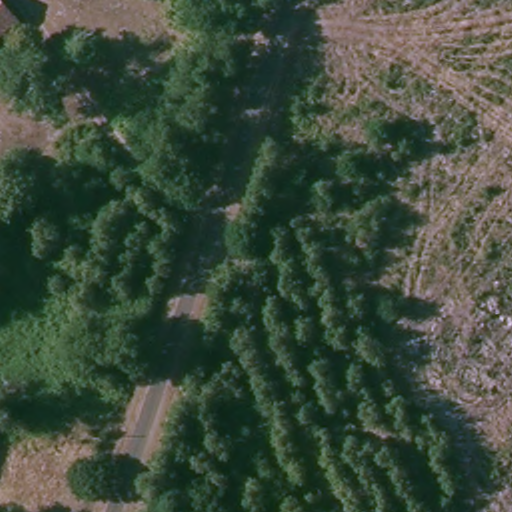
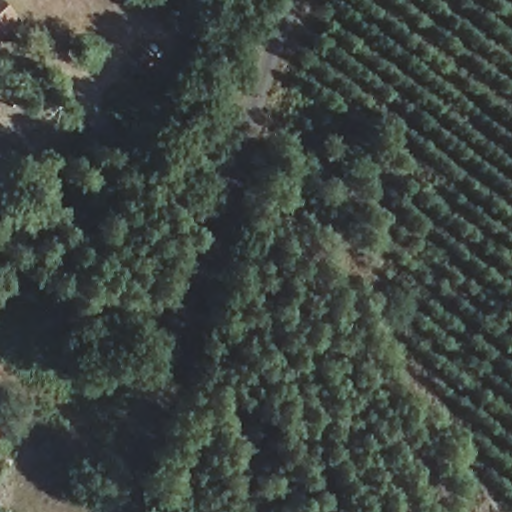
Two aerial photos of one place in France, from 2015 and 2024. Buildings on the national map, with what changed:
unchanged [(6,0),(16,12),(0,27),(0,0),(6,0)]

